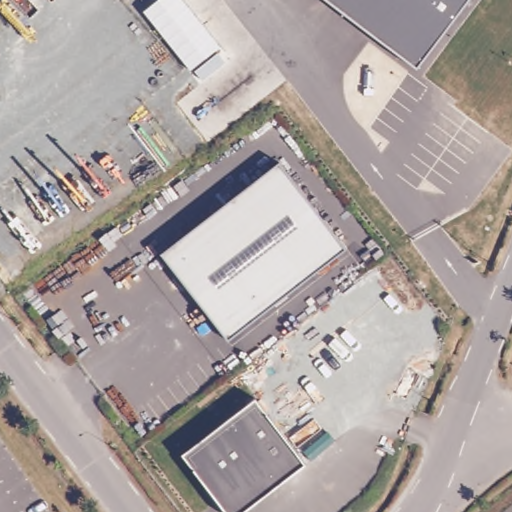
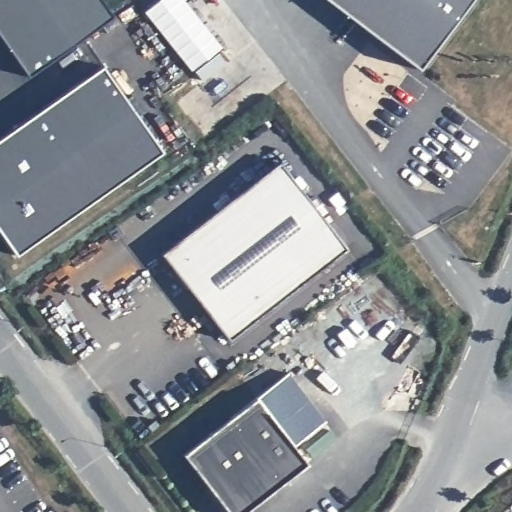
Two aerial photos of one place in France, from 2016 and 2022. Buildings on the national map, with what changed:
new [(0,37),(0,0),(99,0),(111,16),(26,75),(0,37)]
unchanged [(190,69),(141,10),(154,0),(180,0),(219,44),(190,69)]
unchanged [(327,0),(468,0),(416,66),(327,0)]
new [(102,68),(158,151),(15,252),(0,232),(0,139),(102,68)]
unchanged [(347,249),(327,263),(226,338),(160,250),(262,175),(281,161),(347,249)]
unchanged [(290,375),(325,419),(287,445),(253,400),(290,375)]
unchanged [(277,485),(276,483),(237,512),(224,512),(216,501),(210,485),(206,487),(182,456),(227,419),(229,421),(253,400),(303,467),(277,485)]

